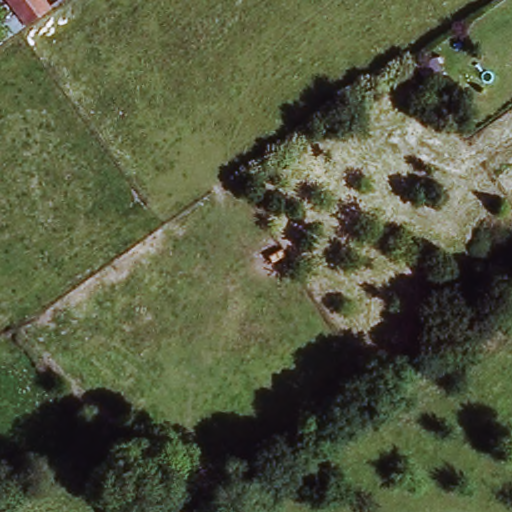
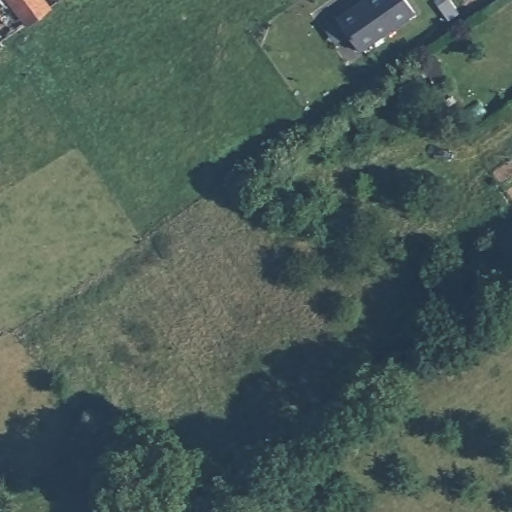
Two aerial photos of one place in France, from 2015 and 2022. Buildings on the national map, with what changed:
unchanged [(27,26),(7,0),(62,0),(51,8),(27,26)]
new [(362,0),(409,0),(416,11),(361,49),(338,17),(362,0)]
unchanged [(90,437),(105,456),(94,465),(80,446),(90,437)]

